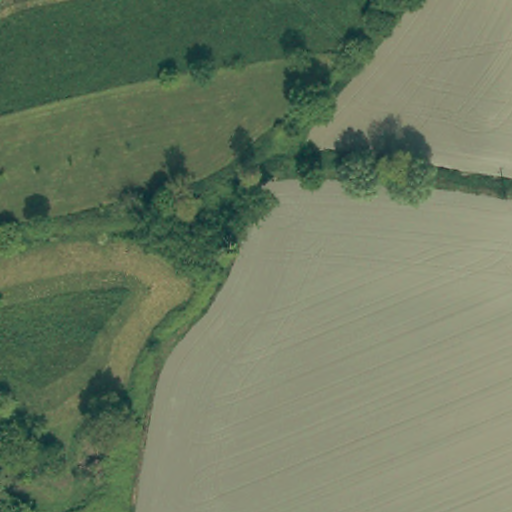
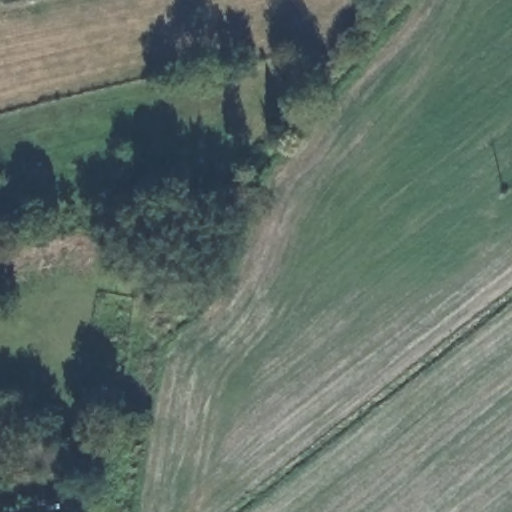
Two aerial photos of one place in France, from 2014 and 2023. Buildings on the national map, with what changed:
[]

